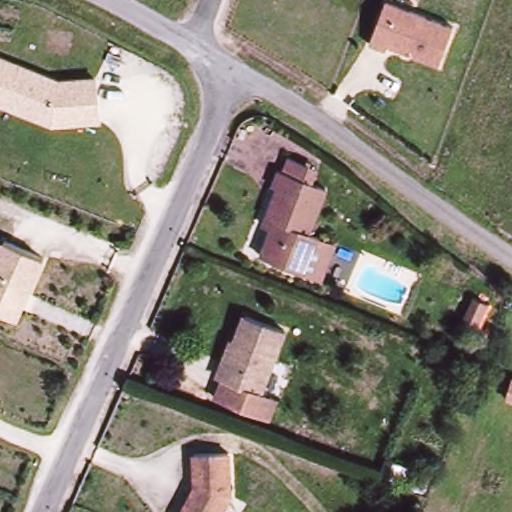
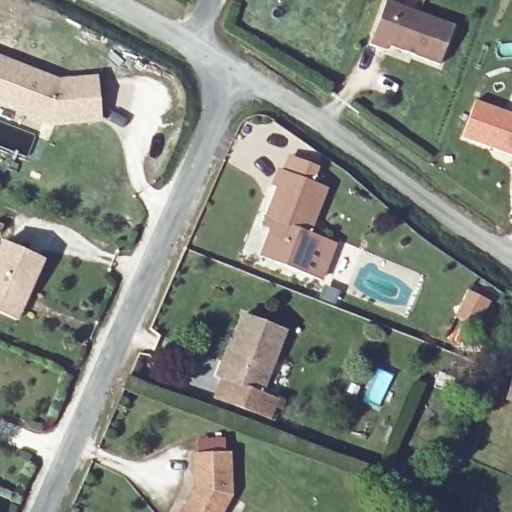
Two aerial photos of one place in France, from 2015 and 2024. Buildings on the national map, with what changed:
unchanged [(440,65),(388,47),(387,51),(372,44),(387,1),(454,27),(440,65)]
unchanged [(0,56),(52,76),(89,74),(91,95),(42,99),(37,116),(0,101),(0,56)]
unchanged [(37,116),(42,99),(91,95),(92,116),(46,120),(37,116)]
new [(476,99),(512,113),(512,155),(461,136),(476,99)]
unchanged [(312,235),(337,245),(323,282),(262,259),(276,223),(268,220),(280,189),(276,188),(282,171),(286,173),(292,158),(318,169),(312,183),(330,190),(312,235)]
unchanged [(17,321),(0,314),(0,265),(9,245),(49,262),(32,299),(27,297),(17,321)]
unchanged [(463,322),(474,295),(488,302),(478,329),(463,322)]
unchanged [(282,400),(275,419),(221,398),(227,379),(225,378),(250,312),(291,327),(266,394),(282,400)]
unchanged [(506,401),(512,375),(512,402),(506,401)]
unchanged [(196,494),(195,461),(230,459),(231,501),(225,512),(192,512),(201,496),(196,494)]

